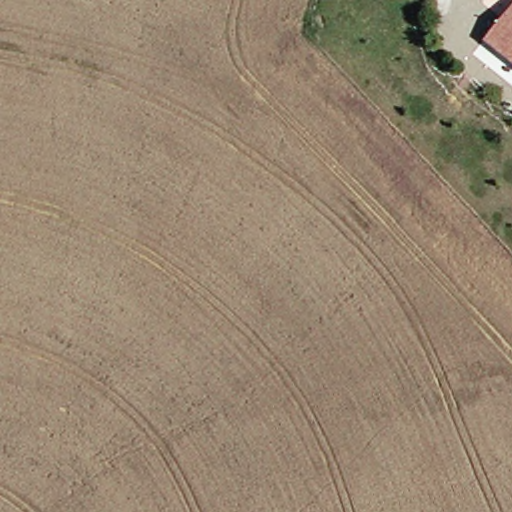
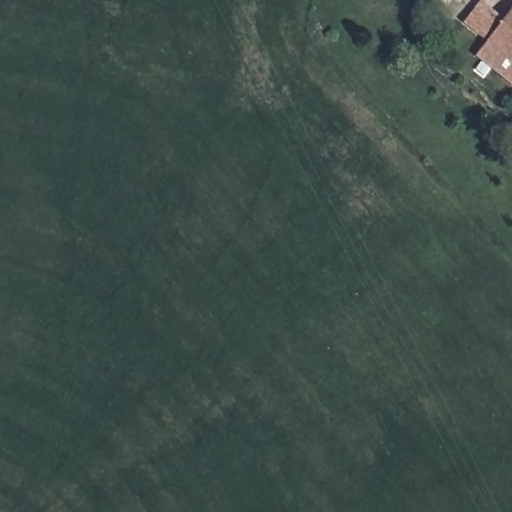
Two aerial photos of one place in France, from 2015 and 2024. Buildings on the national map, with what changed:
unchanged [(509,0),(512,0),(512,70),(476,42),(509,0)]

